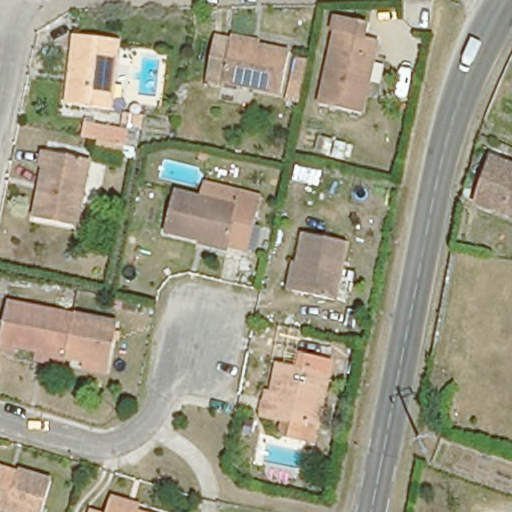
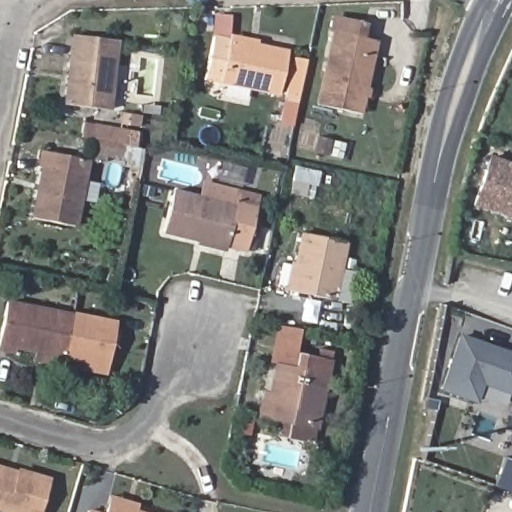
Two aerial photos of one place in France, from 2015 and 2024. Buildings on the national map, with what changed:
unchanged [(123,45),(109,111),(61,101),(76,33),(123,45)]
unchanged [(363,121),(324,112),(339,41),(377,49),(363,121)]
unchanged [(281,59),(275,97),(215,84),(223,46),(281,59)]
unchanged [(86,163),(74,225),(34,217),(46,154),(86,163)]
unchanged [(488,156),(512,166),(512,220),(470,203),(488,156)]
unchanged [(231,210),(232,204),(257,210),(248,256),(166,235),(174,197),(231,210)]
unchanged [(345,241),(335,299),(294,290),(306,233),(345,241)]
unchanged [(104,370),(40,359),(41,349),(15,344),(14,352),(0,350),(0,342),(8,303),(113,322),(104,370)]
new [(510,395),(506,406),(480,397),(477,404),(440,388),(459,333),(512,352),(512,396),(510,395)]
unchanged [(273,393),(279,362),(326,371),(315,428),(259,416),(263,391),(273,393)]
new [(496,487),(506,459),(512,461),(512,493),(496,487)]
unchanged [(44,512),(11,512),(0,509),(0,471),(51,487),(44,512)]
unchanged [(108,502),(110,492),(136,500),(133,510),(138,512),(106,512),(108,502)]

